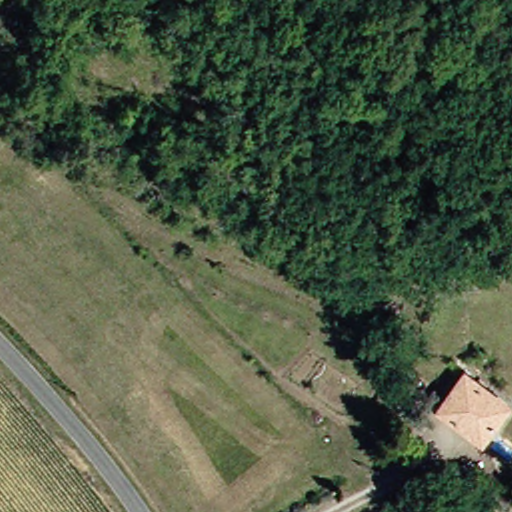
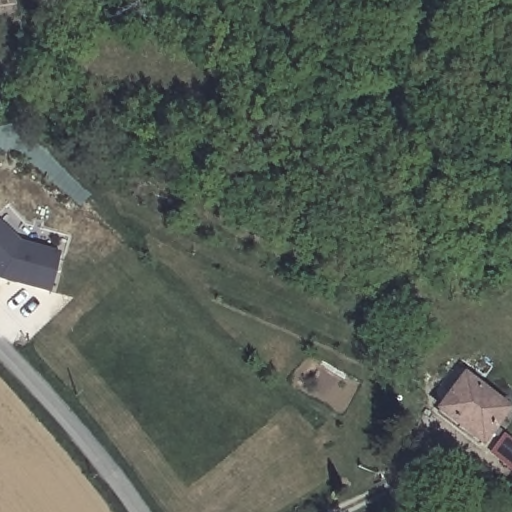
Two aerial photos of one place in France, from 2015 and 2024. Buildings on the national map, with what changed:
new [(0,223),(18,242),(59,253),(48,293),(0,280),(0,223)]
unchanged [(509,403),(488,439),(447,416),(469,379),(509,403)]

